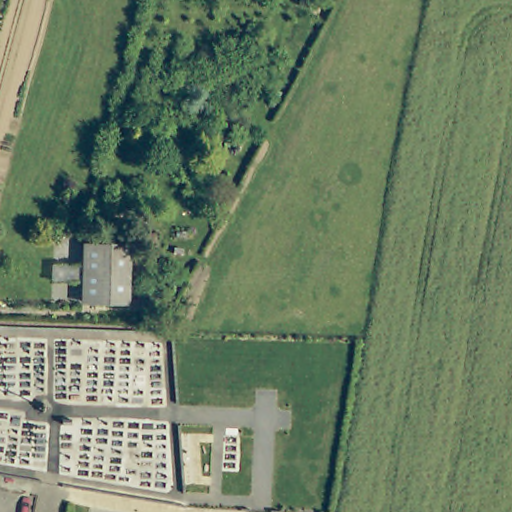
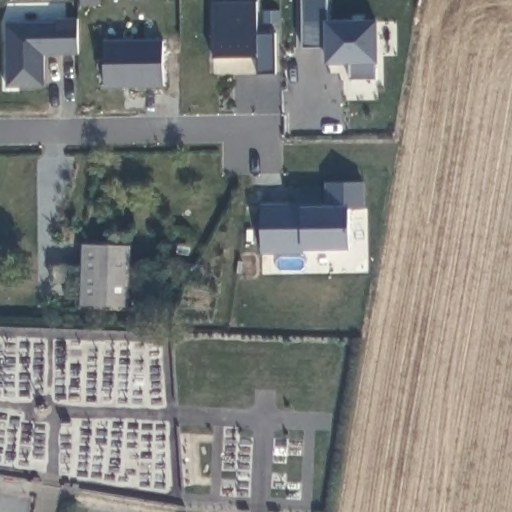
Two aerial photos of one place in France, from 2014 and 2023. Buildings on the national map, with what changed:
new [(377,19),(380,62),(378,77),(352,76),(352,63),(327,63),(326,47),(302,48),(301,0),(329,0),(331,20),(377,19)]
new [(257,72),(256,57),(212,56),(212,1),(257,2),(257,34),(275,33),(275,72),(257,72)]
new [(45,55),(45,87),(6,86),(6,22),(55,22),(55,18),(80,18),(79,55),(45,55)]
new [(105,86),(104,40),(164,39),(165,84),(105,86)]
new [(304,202),(305,206),(328,205),(327,181),(365,180),(366,207),(351,208),(352,249),(306,250),(306,254),(263,253),(262,204),(304,202)]
unchanged [(88,303),(90,243),(131,244),(129,305),(88,303)]
unchanged [(142,282),(159,282),(157,314),(141,313),(142,282)]

